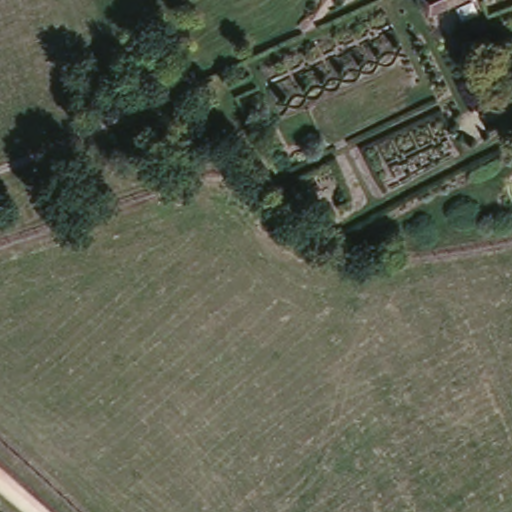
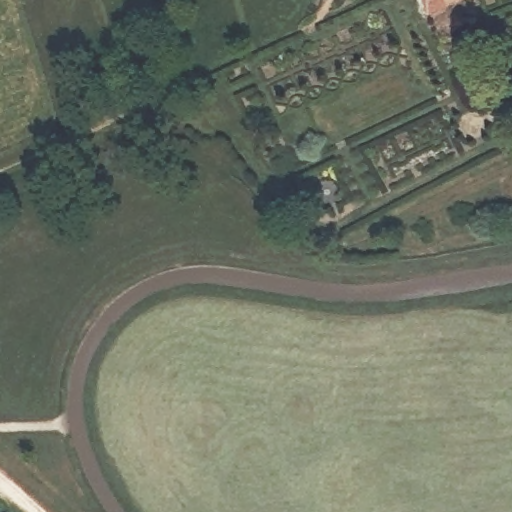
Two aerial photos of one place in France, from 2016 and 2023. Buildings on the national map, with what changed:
unchanged [(454,0),(429,12),(423,0),(454,0)]

